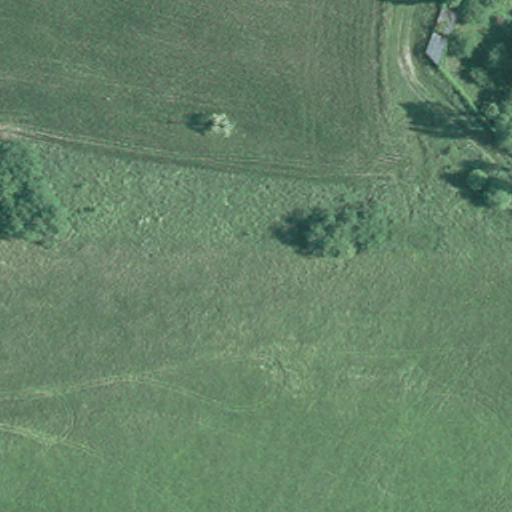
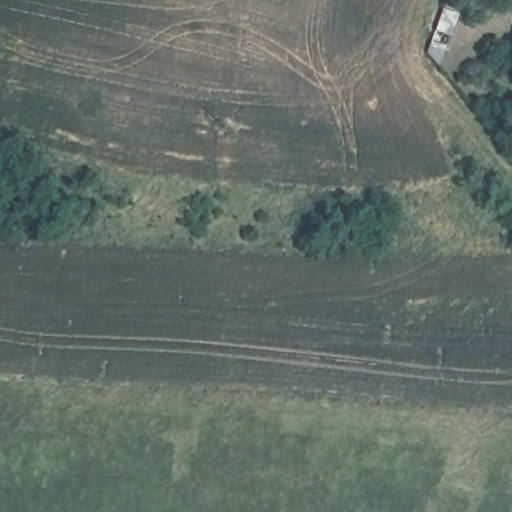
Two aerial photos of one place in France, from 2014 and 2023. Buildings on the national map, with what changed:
unchanged [(424,54),(436,21),(439,9),(456,15),(437,68),(424,54)]

